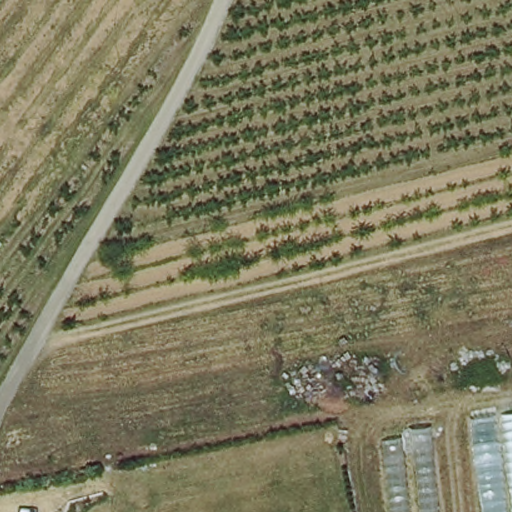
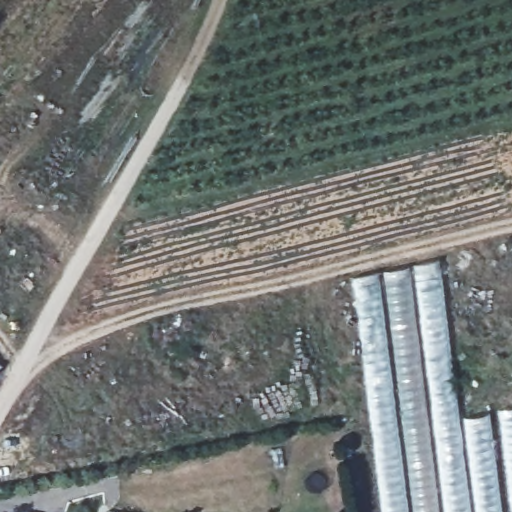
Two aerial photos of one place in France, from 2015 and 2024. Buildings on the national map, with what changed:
new [(456,419),(502,408),(512,407),(512,512),(380,512),(352,279),(436,261),(456,419)]
demolished [(406,431),(512,414),(512,512),(385,512),(378,446),(408,442),(406,431)]

